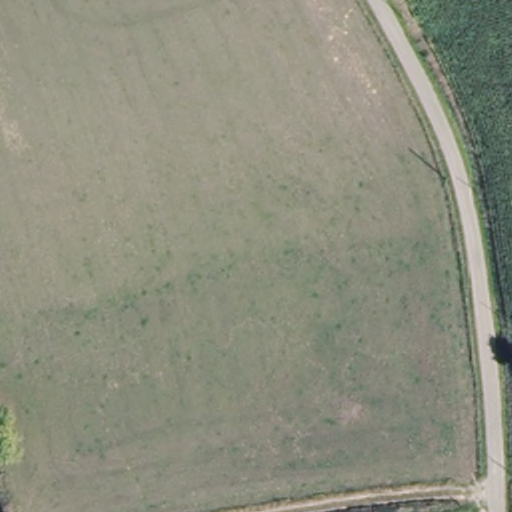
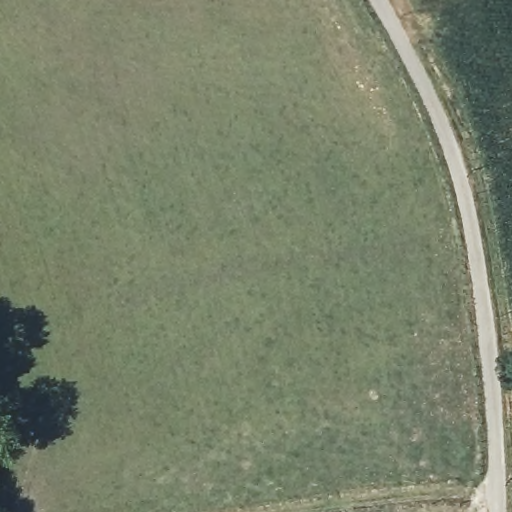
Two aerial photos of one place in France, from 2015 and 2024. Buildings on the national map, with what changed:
[]

